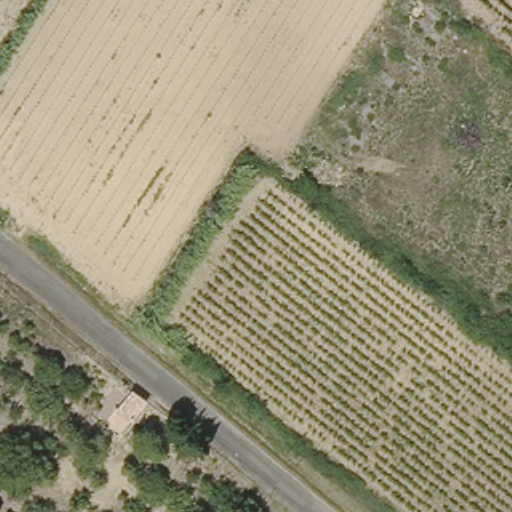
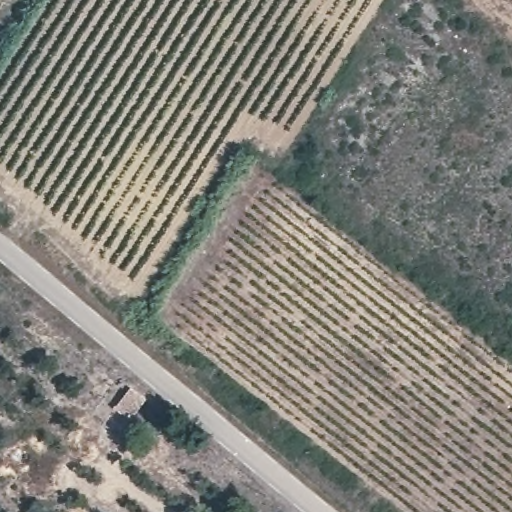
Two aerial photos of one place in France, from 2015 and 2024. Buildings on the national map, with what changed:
unchanged [(148,398),(135,417),(120,407),(134,386),(148,398)]

